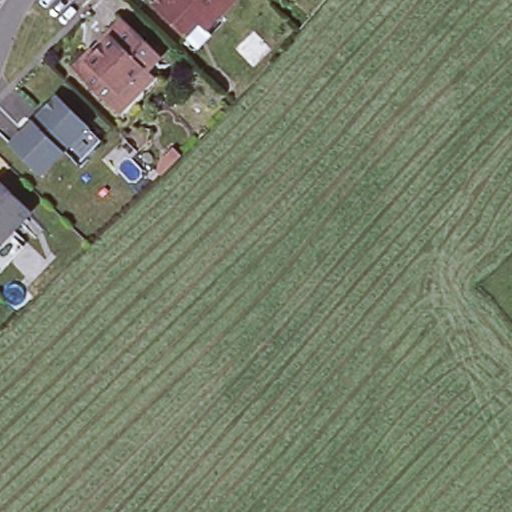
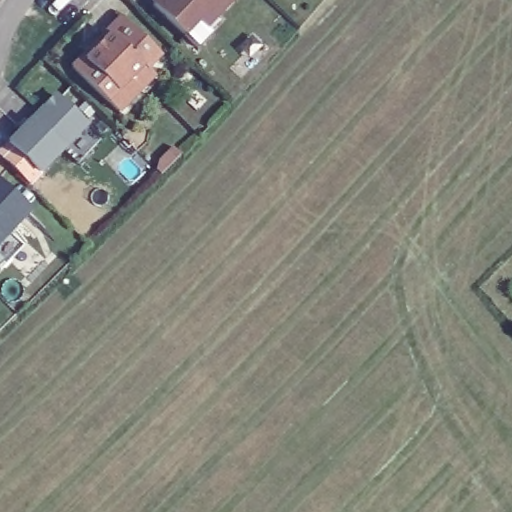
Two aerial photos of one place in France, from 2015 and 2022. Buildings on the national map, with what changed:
unchanged [(206,27),(205,28),(198,21),(185,36),(152,4),(156,0),(233,0),(206,27)]
unchanged [(82,56),(85,60),(110,35),(106,31),(120,17),(160,55),(146,70),(142,66),(130,79),(141,89),(128,102),(117,92),(107,102),(71,67),(82,56)]
unchanged [(30,120),(35,124),(43,115),(43,107),(52,99),(59,99),(87,126),(40,174),(8,143),(30,120)]
unchanged [(0,182),(25,206),(4,227),(17,241),(0,260),(0,182)]

